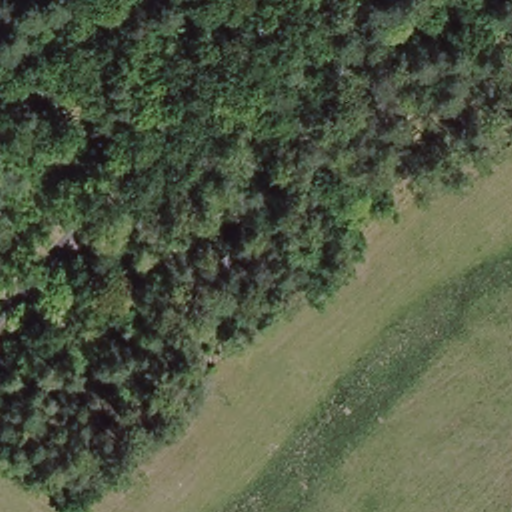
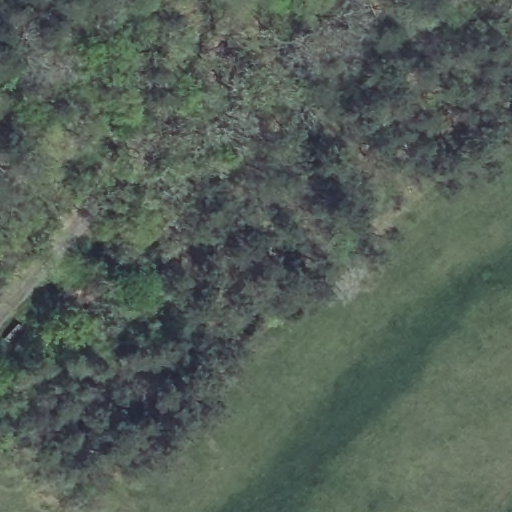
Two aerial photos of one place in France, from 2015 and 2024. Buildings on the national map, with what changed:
[]

